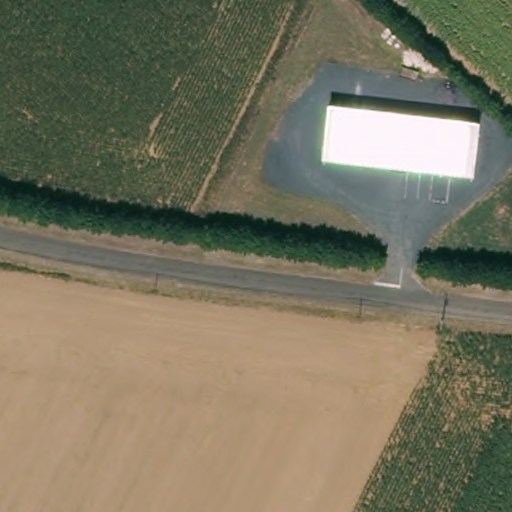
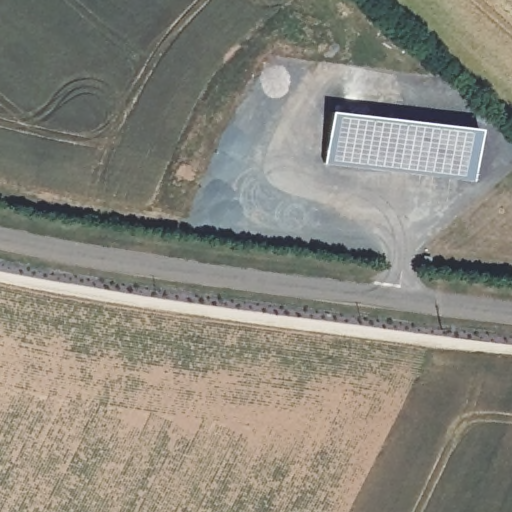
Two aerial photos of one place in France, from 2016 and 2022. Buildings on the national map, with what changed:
unchanged [(323,165),(329,113),(479,130),(473,183),(323,165)]

